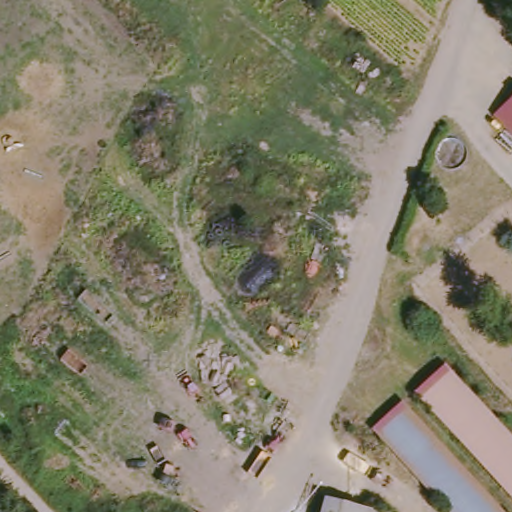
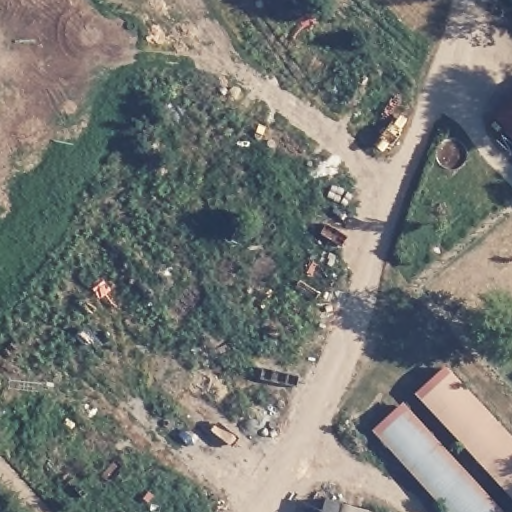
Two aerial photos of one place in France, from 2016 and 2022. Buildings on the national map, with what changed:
unchanged [(512,96),(512,134),(493,113),(512,96)]
unchanged [(498,126),(492,132),(485,125),(492,119),(498,126)]
unchanged [(447,366),(512,436),(512,498),(415,393),(447,366)]
unchanged [(402,407),(498,512),(446,512),(374,432),(402,407)]
unchanged [(324,502),(364,512),(321,512),(324,502)]

